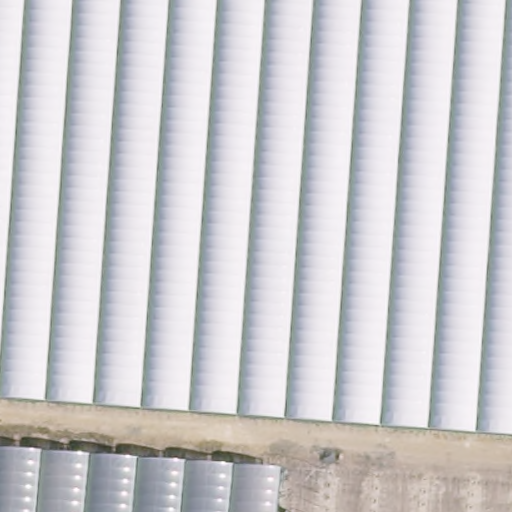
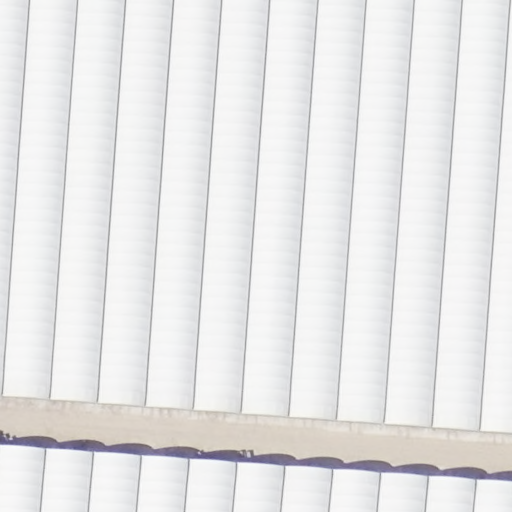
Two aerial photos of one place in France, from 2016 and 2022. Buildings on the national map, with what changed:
unchanged [(512,435),(0,398),(0,0),(512,0),(512,435)]
unchanged [(277,512),(0,512),(0,449),(280,468),(277,512)]
new [(512,512),(277,512),(280,468),(512,484),(512,512)]

